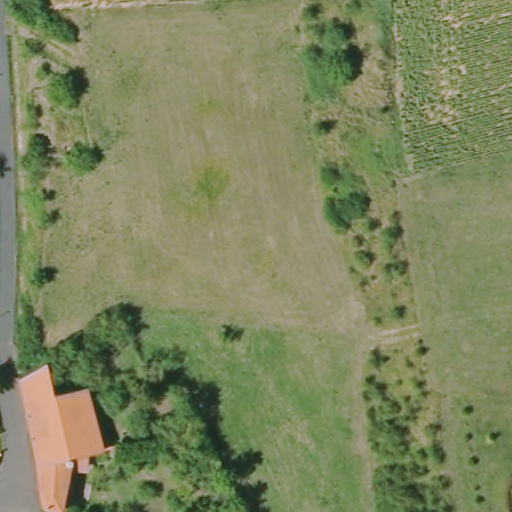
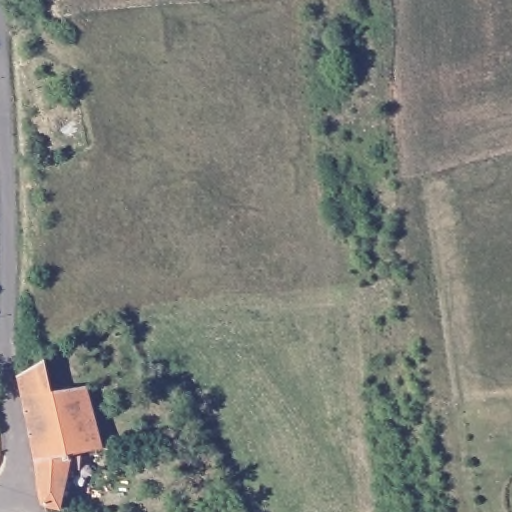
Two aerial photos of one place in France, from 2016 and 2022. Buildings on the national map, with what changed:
unchanged [(40,393),(75,390),(92,448),(72,457),(72,468),(55,468),(57,512),(56,512),(41,507),(15,382),(33,370),(40,393)]

